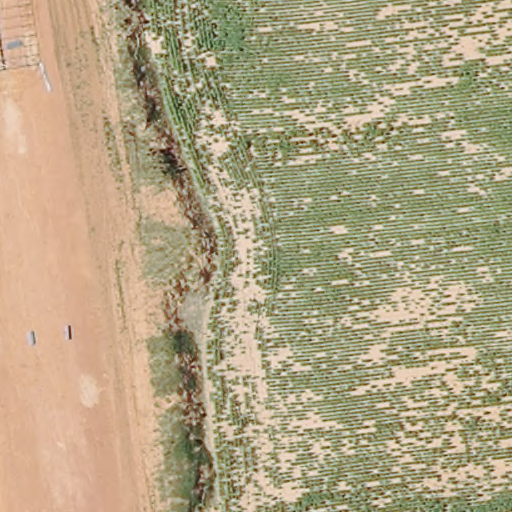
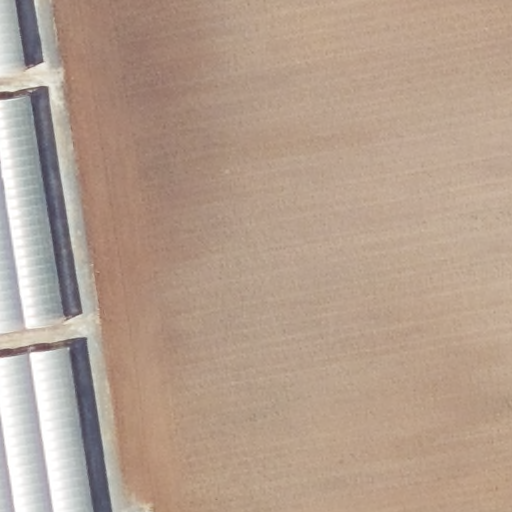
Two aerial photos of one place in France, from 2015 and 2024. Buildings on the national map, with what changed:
new [(27,62),(0,67),(0,0),(18,0),(27,62)]
new [(27,92),(62,319),(0,329),(0,96),(27,92)]
new [(93,512),(0,512),(0,355),(67,345),(93,512)]

